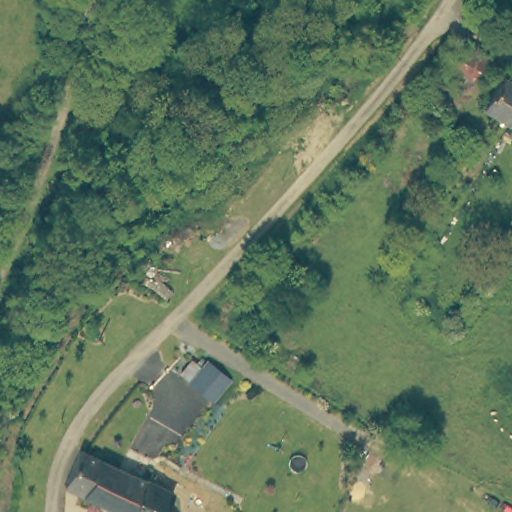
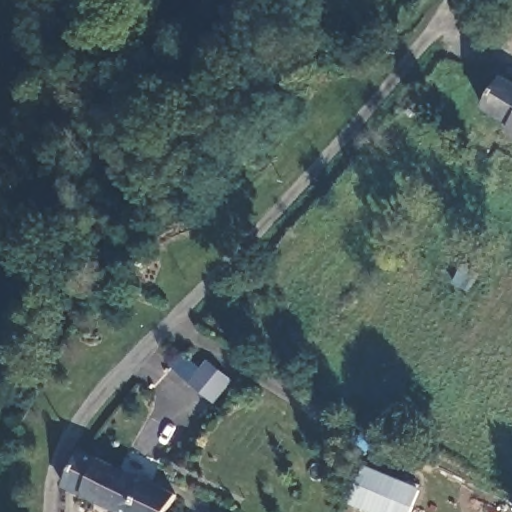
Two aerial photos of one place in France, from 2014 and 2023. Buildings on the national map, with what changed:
unchanged [(452,69),(465,47),(492,60),(479,83),(452,69)]
unchanged [(512,75),(512,105),(506,115),(478,97),(498,66),(512,75)]
unchanged [(502,121),(506,115),(512,105),(512,128),(502,121)]
unchanged [(490,276),(480,270),(485,260),(496,266),(490,276)]
unchanged [(191,381),(208,361),(231,382),(213,401),(191,381)]
unchanged [(60,480),(76,445),(80,447),(146,477),(129,512),(126,512),(60,480)]
new [(412,512),(371,512),(348,503),(366,464),(423,489),(412,512)]
unchanged [(178,512),(129,512),(146,477),(186,499),(178,512)]

